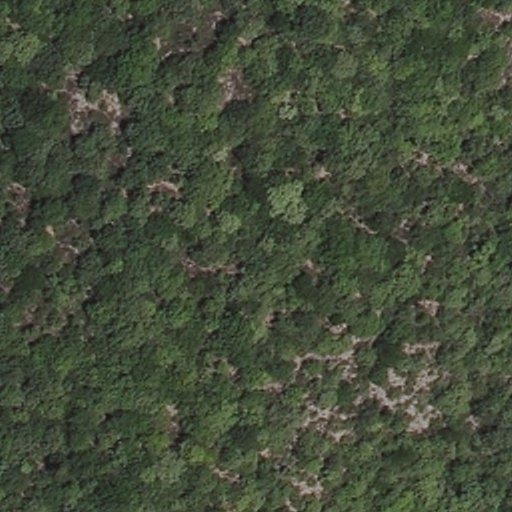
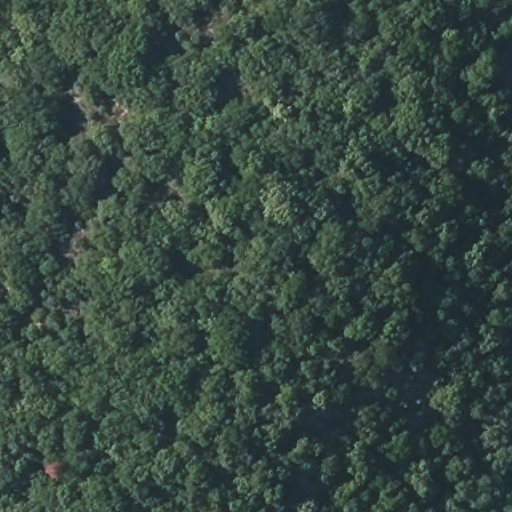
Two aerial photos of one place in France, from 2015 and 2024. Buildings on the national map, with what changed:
[]

